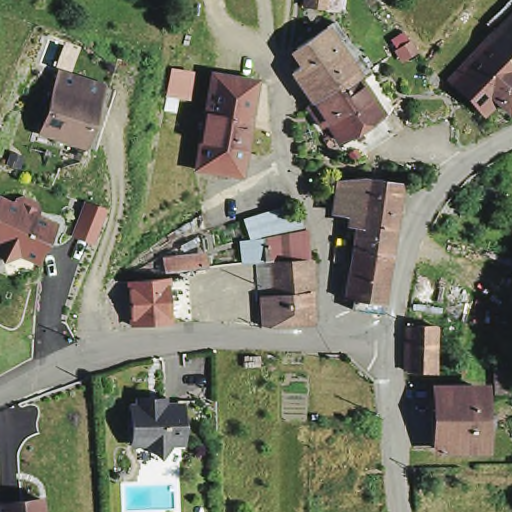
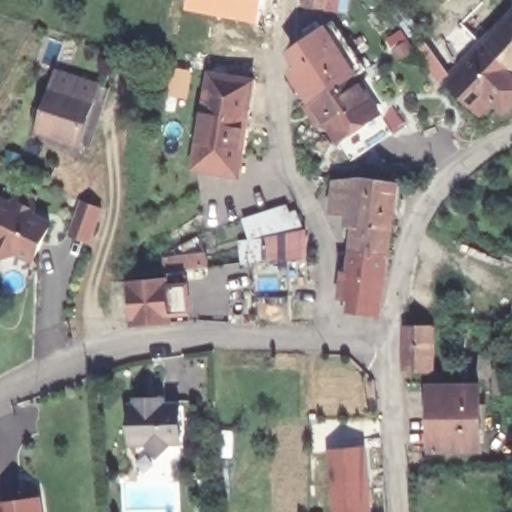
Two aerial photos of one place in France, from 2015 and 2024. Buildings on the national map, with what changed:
new [(261,0),(256,24),(184,10),(186,0),(261,0)]
unchanged [(303,0),(324,0),(323,10),(302,9),(303,0)]
unchanged [(502,98),(490,111),(456,76),(489,42),(512,17),(512,108),(502,98)]
unchanged [(311,109),(306,100),(311,97),(292,69),(297,64),(295,46),(332,20),(365,66),(389,101),(377,108),(377,109),(337,136),(316,105),(311,109)]
new [(172,66),(191,69),(186,99),(166,95),(172,66)]
unchanged [(34,131),(57,69),(97,83),(79,143),(34,131)]
unchanged [(254,84),(238,178),(194,170),(210,76),(254,84)]
unchanged [(391,127),(350,155),(337,136),(377,109),(391,127)]
unchanged [(338,179),(360,175),(385,178),(397,179),(387,253),(351,248),(356,210),(334,208),(338,179)]
unchanged [(0,258),(0,193),(53,217),(32,259),(16,252),(0,258)]
unchanged [(247,236),(243,217),(279,207),(282,220),(297,216),(300,229),(261,238),(262,258),(240,260),(237,239),(247,236)]
unchanged [(300,257),(270,259),(269,243),(298,240),(300,257)]
unchanged [(348,271),(351,248),(387,253),(382,299),(375,310),(352,306),(353,296),(345,295),(346,293),(340,292),(342,270),(348,271)]
unchanged [(189,257),(199,255),(200,266),(190,267),(189,257)]
unchanged [(306,258),(308,291),(270,294),(267,259),(306,258)]
unchanged [(172,277),(173,302),(162,303),(164,322),(126,324),(124,301),(114,302),(105,303),(110,280),(116,280),(122,280),(161,278),(172,277)]
unchanged [(267,323),(265,294),(270,294),(308,291),(310,321),(267,323)]
unchanged [(410,374),(411,364),(409,363),(409,330),(439,329),(438,366),(437,376),(410,374)]
unchanged [(494,391),(492,367),(506,366),(507,390),(494,391)]
unchanged [(427,393),(472,391),(474,450),(430,452),(427,393)]
unchanged [(191,451),(130,451),(131,407),(191,405),(191,451)]
new [(371,446),(377,512),(333,512),(331,448),(371,446)]
unchanged [(0,500),(39,493),(41,512),(0,512),(0,500)]

